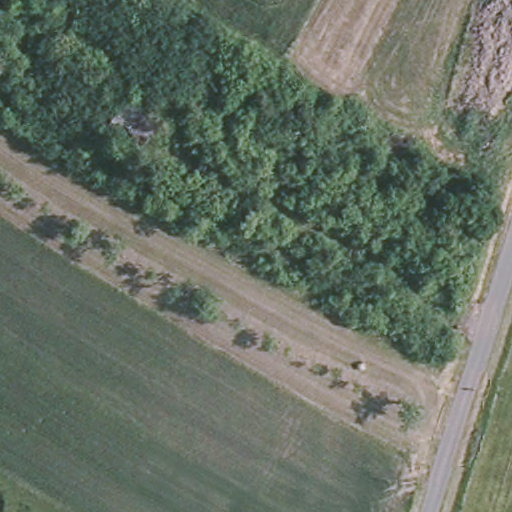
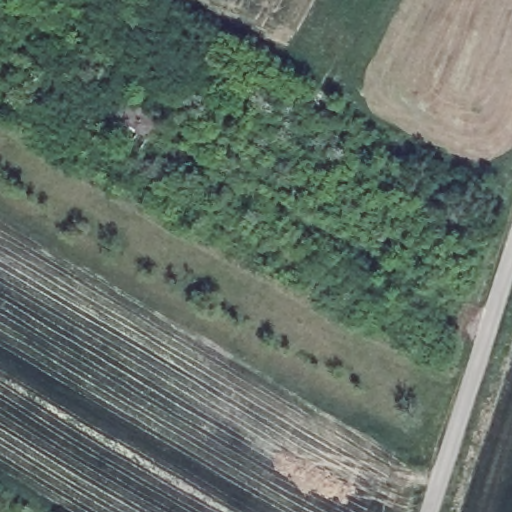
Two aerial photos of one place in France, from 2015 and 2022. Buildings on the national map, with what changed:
unchanged [(100,132),(122,100),(160,130),(143,156),(100,132)]

